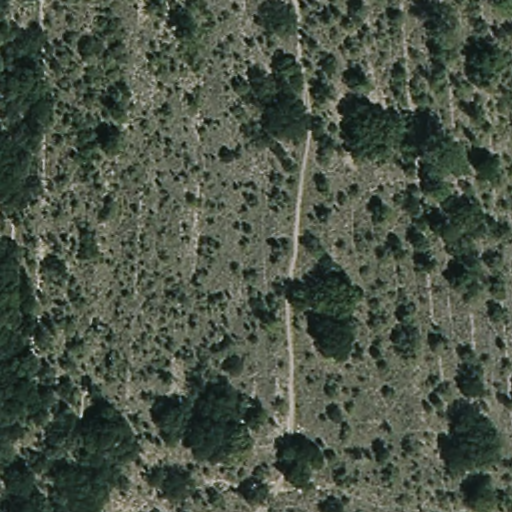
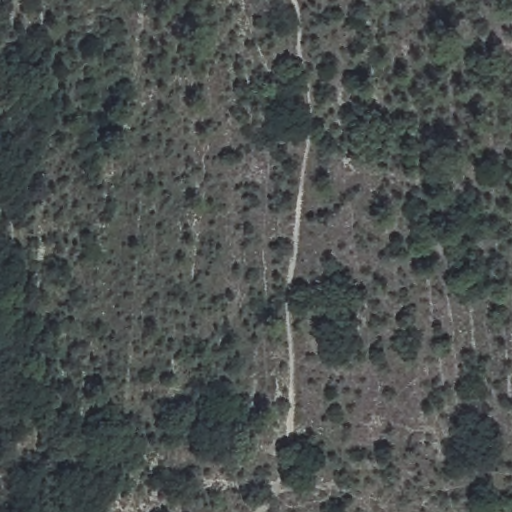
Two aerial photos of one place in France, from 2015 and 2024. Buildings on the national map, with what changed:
[]

